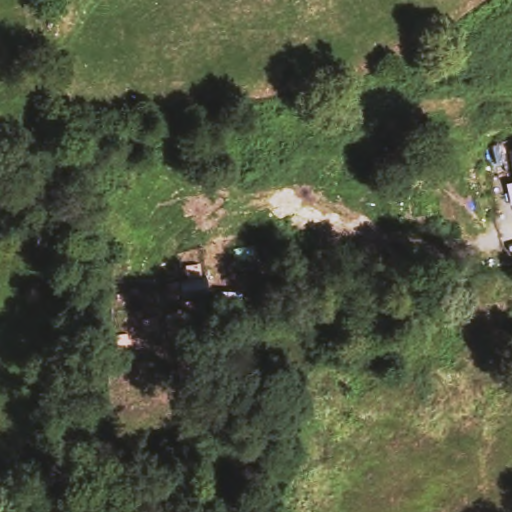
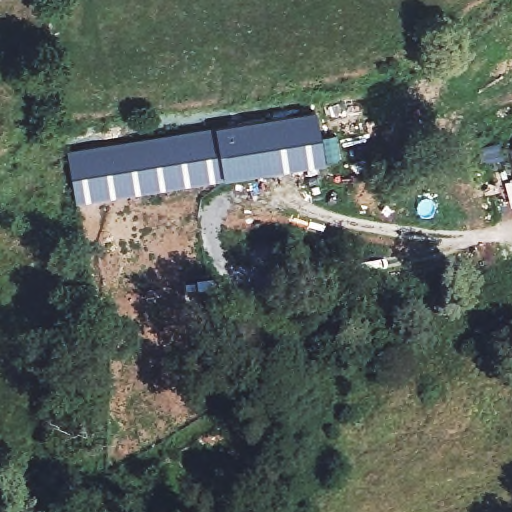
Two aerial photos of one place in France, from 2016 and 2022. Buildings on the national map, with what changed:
new [(70,153),(215,129),(317,114),(324,164),(76,205),(70,153)]
unchanged [(512,151),(512,169),(507,152),(512,151)]
unchanged [(512,183),(512,205),(507,184),(512,183)]

